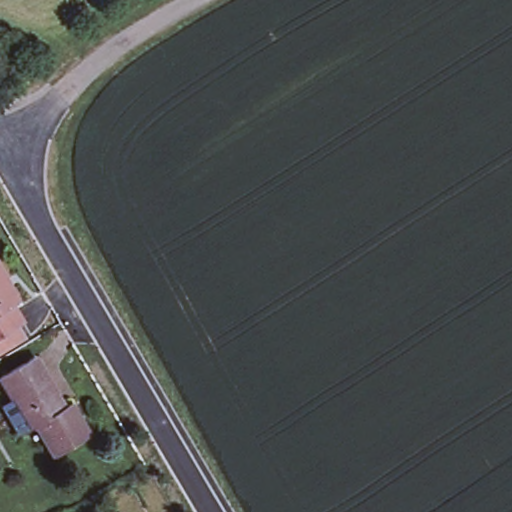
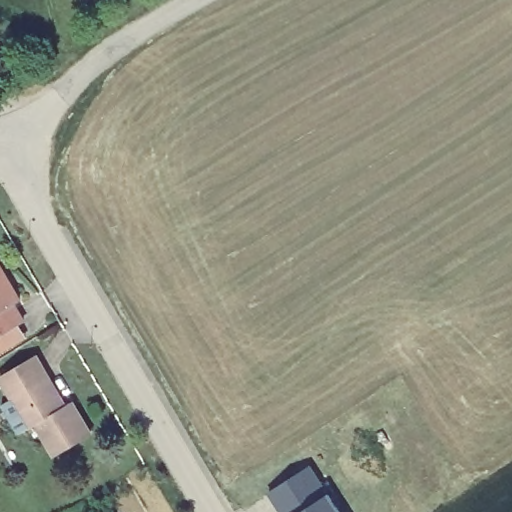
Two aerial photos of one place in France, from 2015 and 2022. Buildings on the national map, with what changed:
unchanged [(18,298),(13,301),(0,308),(0,268),(18,298)]
unchanged [(24,321),(0,335),(0,308),(13,301),(24,321)]
unchanged [(23,424),(0,388),(0,373),(26,357),(39,377),(15,392),(31,419),(23,424)]
unchanged [(39,377),(55,403),(65,397),(87,432),(53,454),(31,419),(15,392),(39,377)]
new [(269,492),(311,465),(329,494),(341,512),(281,512),(269,492)]

